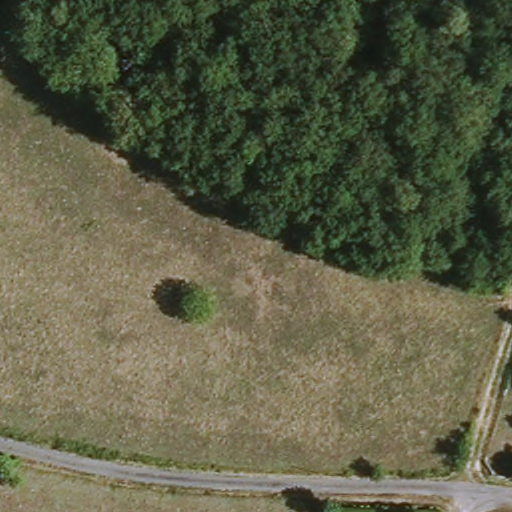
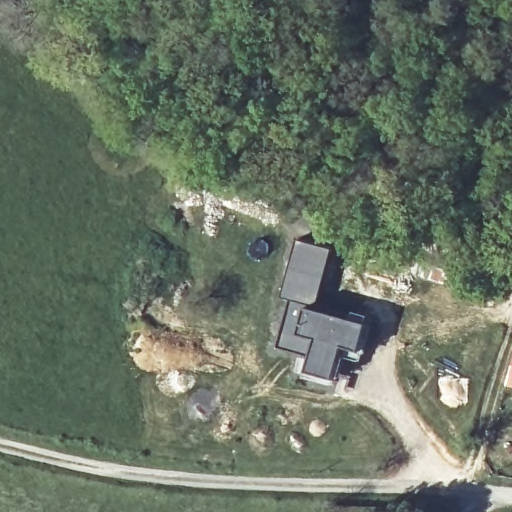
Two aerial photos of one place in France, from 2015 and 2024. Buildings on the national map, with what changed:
new [(289,310),(279,307),(295,246),(332,256),(317,315),(351,323),(349,328),(366,332),(359,359),(342,355),(334,387),(307,381),(311,366),(277,357),(289,310)]

